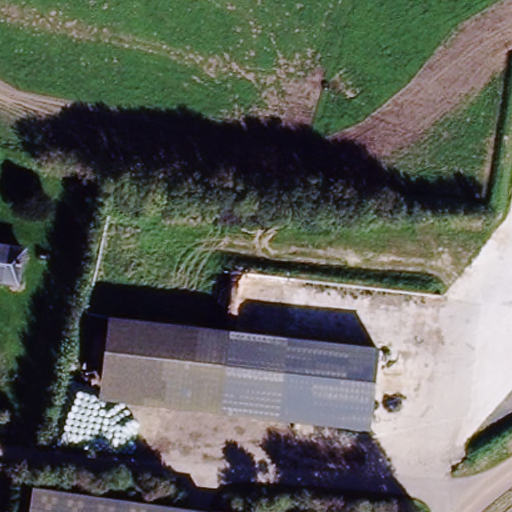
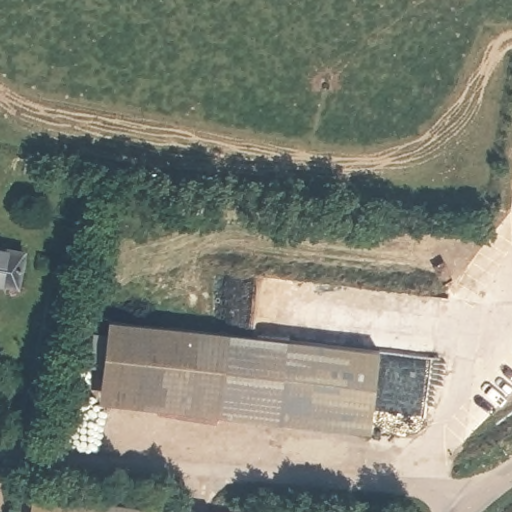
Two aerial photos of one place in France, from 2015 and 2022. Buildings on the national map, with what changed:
unchanged [(15,284),(0,281),(0,256),(20,261),(15,284)]
unchanged [(100,379),(107,318),(289,338),(282,399),(100,379)]
unchanged [(379,349),(370,433),(279,425),(279,419),(282,399),(286,358),(289,338),(379,349)]
unchanged [(98,400),(100,379),(282,399),(279,419),(98,400)]
unchanged [(158,512),(30,512),(33,494),(158,512)]

